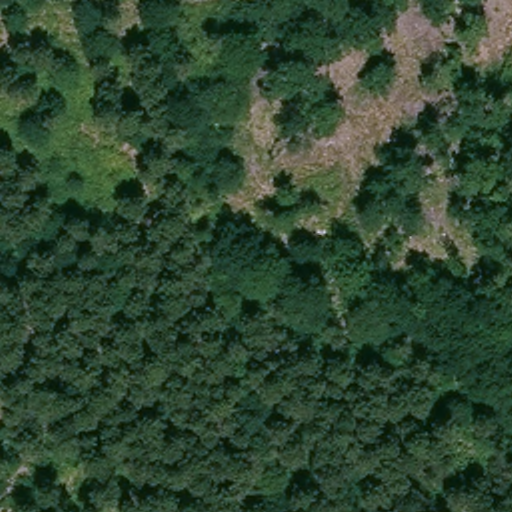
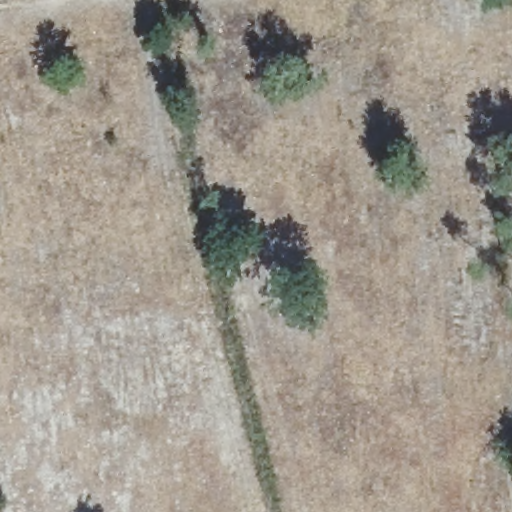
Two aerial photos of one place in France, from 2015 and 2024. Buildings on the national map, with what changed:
unchanged [(222,0),(221,12),(184,7),(184,0),(222,0)]
unchanged [(297,18),(295,0),(347,0),(348,15),(297,18)]
unchanged [(247,96),(222,95),(222,32),(249,34),(247,96)]
unchanged [(269,35),(266,99),(247,96),(249,34),(269,35)]
unchanged [(213,126),(235,127),(236,144),(213,142),(213,126)]

